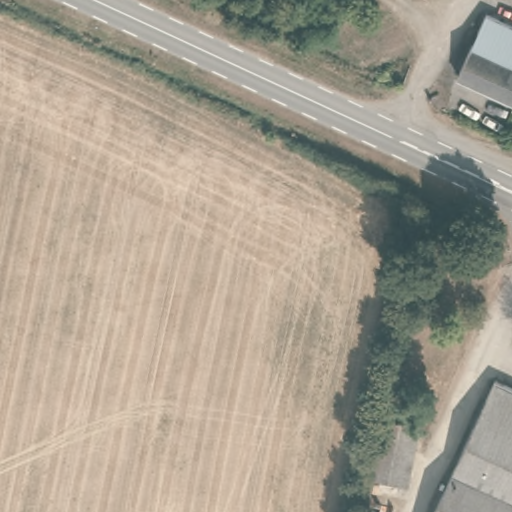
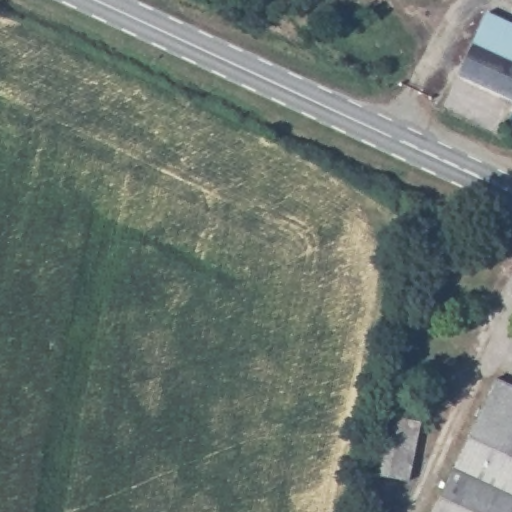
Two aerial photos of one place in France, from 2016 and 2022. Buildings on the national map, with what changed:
unchanged [(512,101),(457,76),(485,14),(512,27),(512,101)]
unchanged [(512,387),(512,512),(434,512),(448,481),(494,378),(512,387)]
unchanged [(419,421),(408,478),(371,471),(381,416),(382,411),(419,421)]

